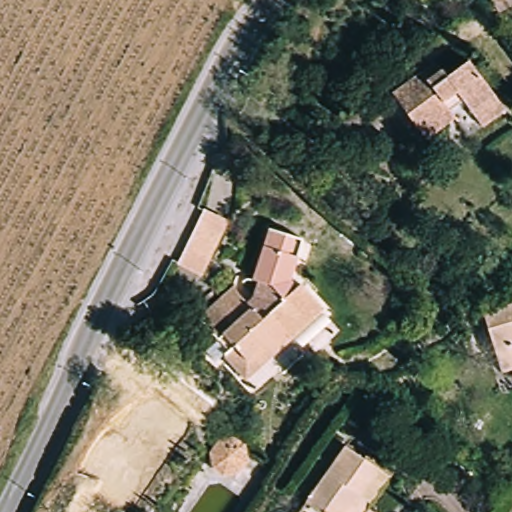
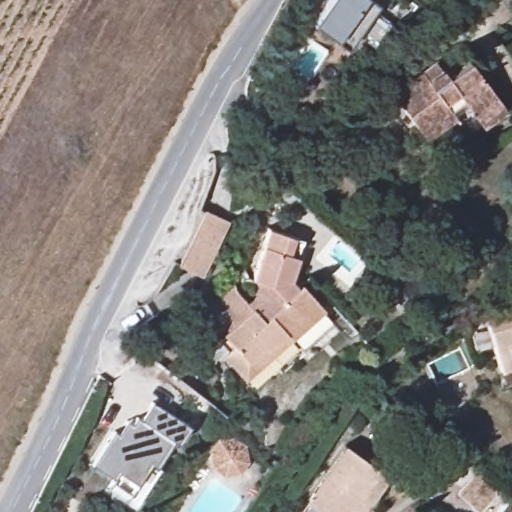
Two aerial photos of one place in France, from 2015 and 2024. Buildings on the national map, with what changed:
new [(311,25),(329,0),(367,0),(374,5),(344,49),(333,41),(311,25)]
unchanged [(491,0),(512,0),(512,4),(498,12),(491,0)]
unchanged [(420,129),(391,90),(436,57),(447,72),(468,57),(505,105),(468,134),(453,114),(425,135),(420,129)]
unchanged [(202,212),(225,224),(201,274),(177,263),(202,212)]
unchanged [(229,355),(220,362),(210,352),(222,341),(203,320),(238,288),(256,308),(263,302),(261,300),(265,283),(257,281),(274,229),(308,241),(295,281),(301,288),(306,285),(328,310),(295,339),(250,380),(229,355)]
unchanged [(500,372),(482,315),(512,305),(512,371),(511,368),(500,372)]
new [(176,442),(170,439),(154,466),(158,469),(135,505),(106,488),(111,479),(90,465),(112,432),(117,435),(124,421),(129,425),(134,417),(139,419),(150,402),(186,426),(176,442)]
unchanged [(225,474),(214,467),(211,453),(219,442),(232,440),(243,447),(246,461),(238,472),(225,474)]
unchanged [(388,476),(363,512),(316,512),(305,505),(345,447),(388,476)]

